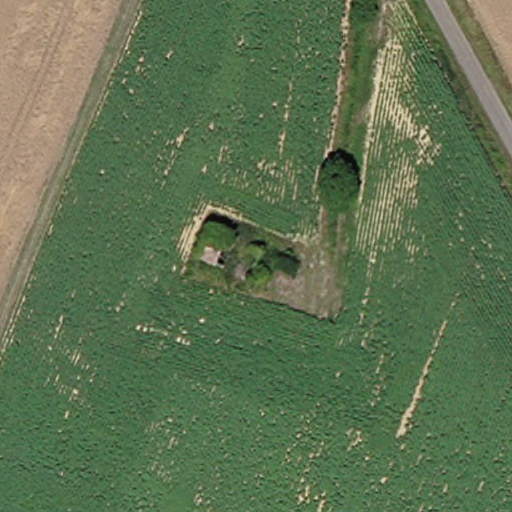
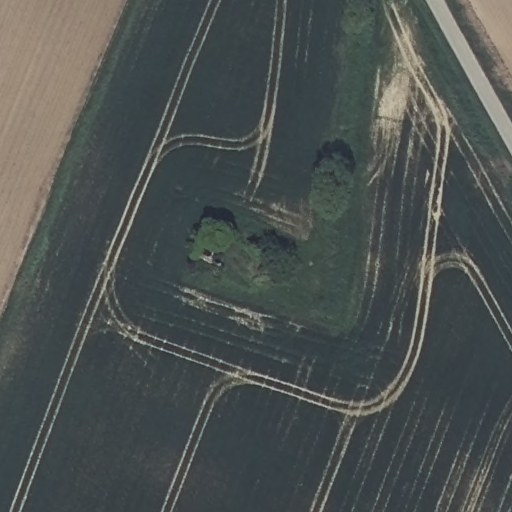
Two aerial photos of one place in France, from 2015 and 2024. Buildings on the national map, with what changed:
unchanged [(188,253),(204,220),(254,249),(242,280),(188,253)]

